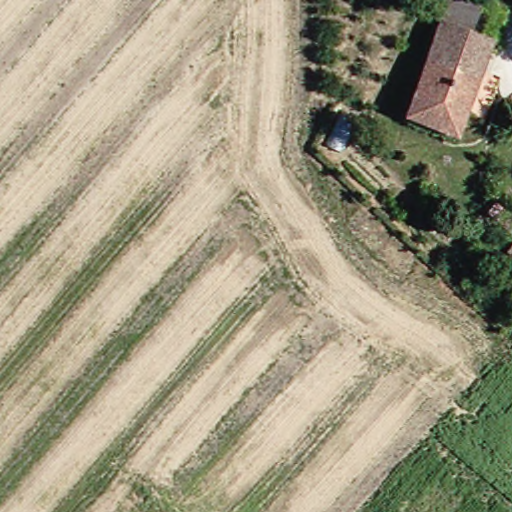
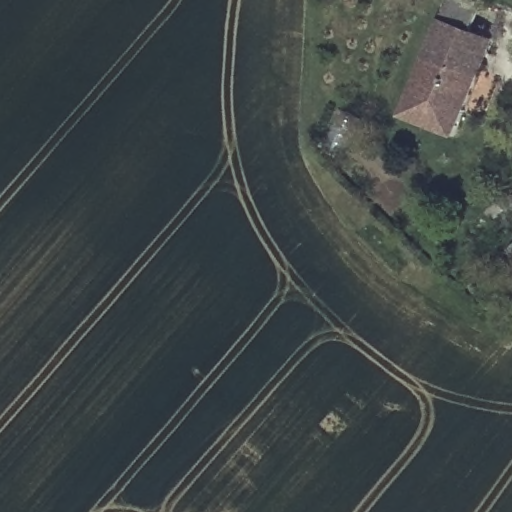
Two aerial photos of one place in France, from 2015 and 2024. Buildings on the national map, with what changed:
unchanged [(469,138),(414,122),(452,0),(489,0),(480,32),(501,38),(469,138)]

